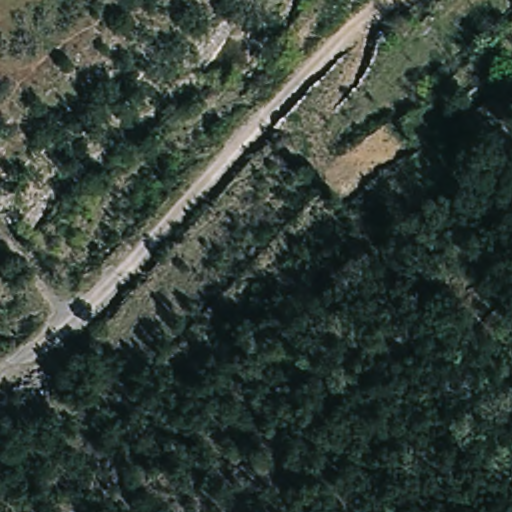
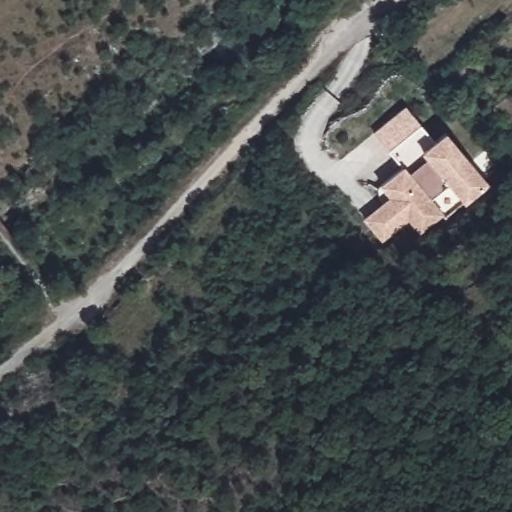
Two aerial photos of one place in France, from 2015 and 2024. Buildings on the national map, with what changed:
new [(391,199),(381,186),(403,169),(376,133),(409,108),(436,144),(447,136),(488,189),(465,207),(451,188),(431,203),(442,218),(419,235),(408,221),(402,225),(381,242),(364,219),(385,203),(391,199)]

